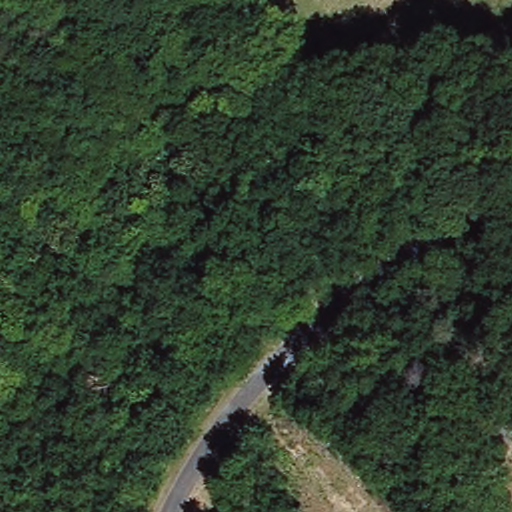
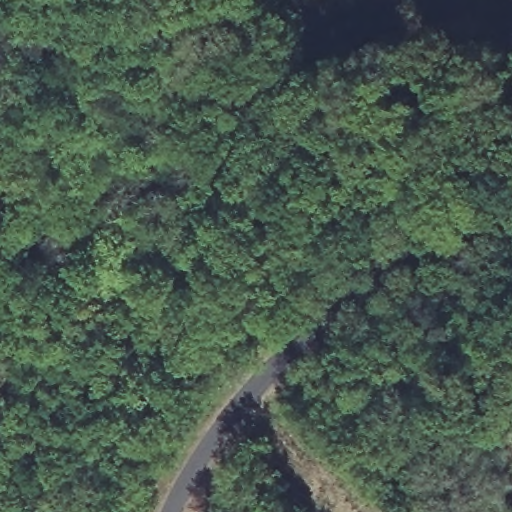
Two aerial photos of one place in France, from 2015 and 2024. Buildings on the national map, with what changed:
unchanged [(499,445),(489,437),(499,418),(512,425),(499,445)]
unchanged [(497,512),(480,512),(484,505),(498,511),(497,512)]

